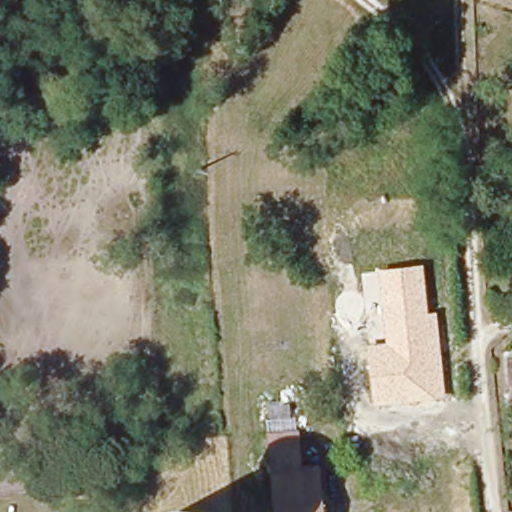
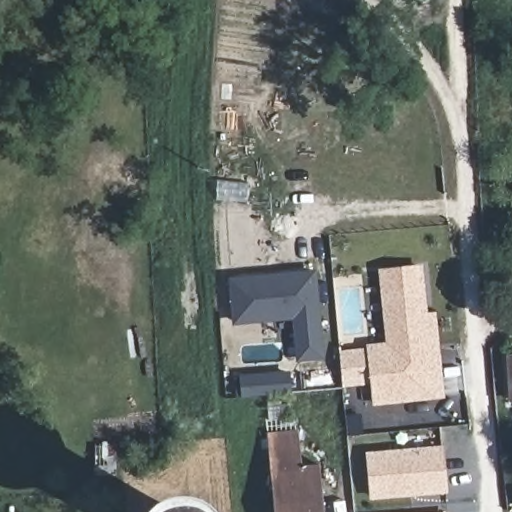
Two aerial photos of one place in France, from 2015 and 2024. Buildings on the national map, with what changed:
unchanged [(428,311),(437,310),(446,396),(375,404),(368,347),(384,345),(378,269),(424,266),(428,311)]
new [(316,275),(324,360),(301,361),(297,319),(238,325),(234,282),(316,275)]
unchanged [(511,363),(512,363),(512,380),(511,363)]
unchanged [(300,466),(316,465),(321,512),(272,512),(265,434),(296,431),(300,466)]
new [(370,501),(365,450),(444,445),(448,492),(370,501)]
new [(450,512),(444,512),(450,511),(450,512)]

